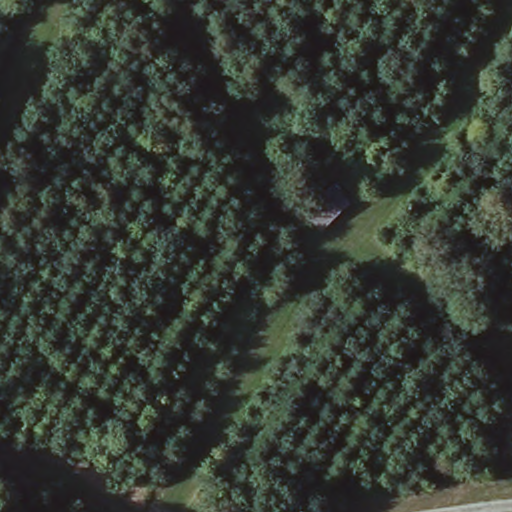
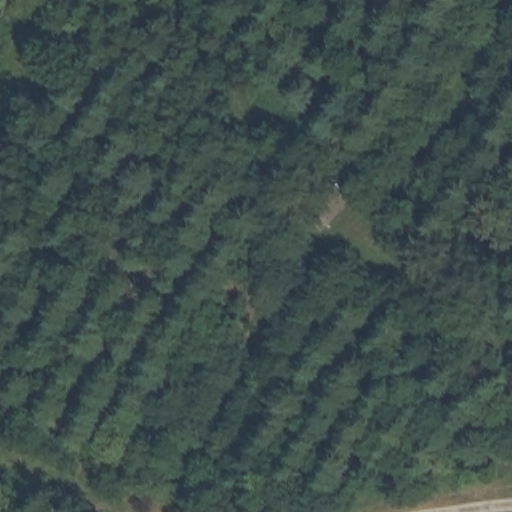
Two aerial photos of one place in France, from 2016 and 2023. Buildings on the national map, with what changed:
unchanged [(304,210),(336,186),(353,208),(323,234),(304,210)]

